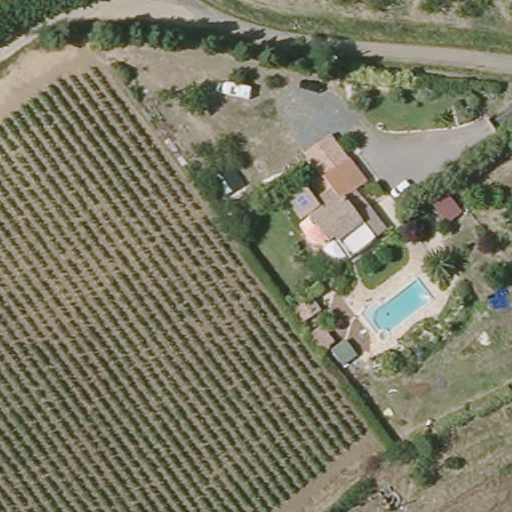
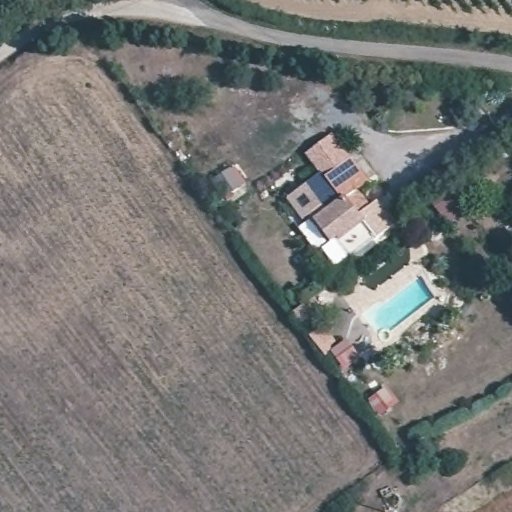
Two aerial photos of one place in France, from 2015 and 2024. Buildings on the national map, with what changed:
unchanged [(375,240),(350,258),(340,242),(332,248),(312,221),(324,212),(315,200),(331,188),(313,156),(339,139),(368,183),(357,191),(370,209),(386,232),(375,240)]

